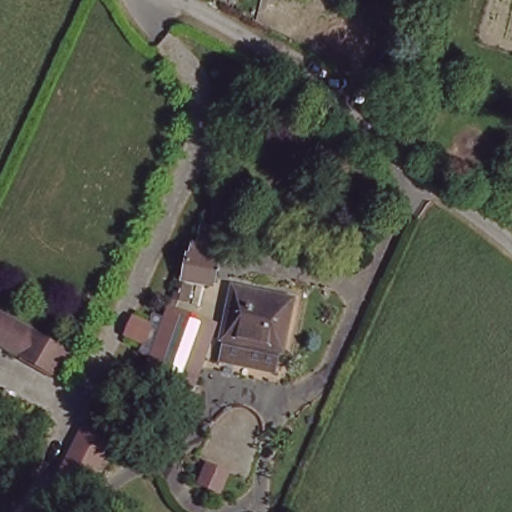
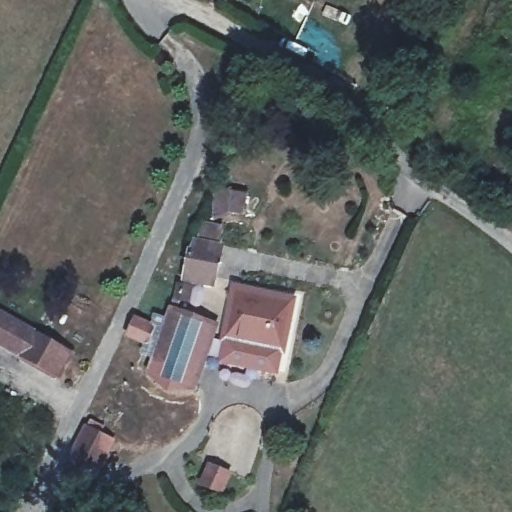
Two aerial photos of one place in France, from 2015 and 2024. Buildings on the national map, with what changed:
unchanged [(238,191),(233,209),(220,204),(207,211),(207,188),(222,185),(238,191)]
unchanged [(211,222),(207,241),(213,241),(211,254),(207,254),(203,279),(176,274),(180,250),(181,246),(184,247),(186,236),(189,237),(193,219),(211,222)]
unchanged [(241,274),(301,284),(292,336),(290,336),(286,358),(231,348),(235,326),(232,326),(241,274)]
unchanged [(220,322),(202,375),(177,378),(156,360),(174,305),(186,296),(218,307),(220,322)]
unchanged [(0,313),(38,336),(24,360),(0,346),(0,313)]
unchanged [(73,356),(59,379),(24,360),(38,336),(73,356)]

